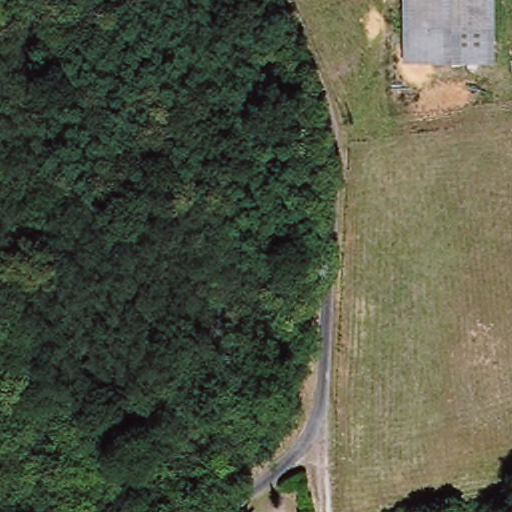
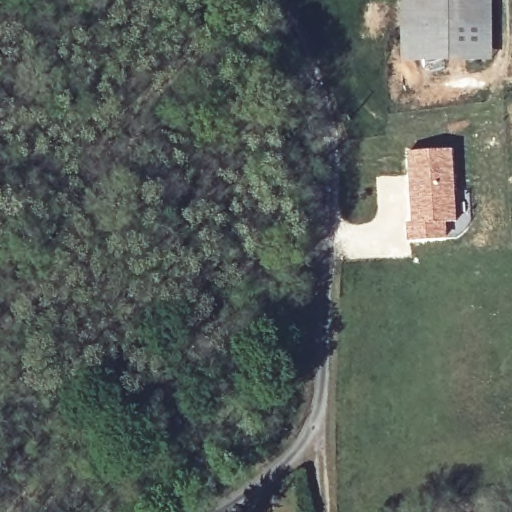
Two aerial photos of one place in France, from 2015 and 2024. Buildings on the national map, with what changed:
unchanged [(402,0),(492,0),(496,60),(404,62),(402,0)]
new [(444,222),(445,238),(411,240),(410,224),(414,224),(409,153),(453,150),(456,220),(444,222)]

